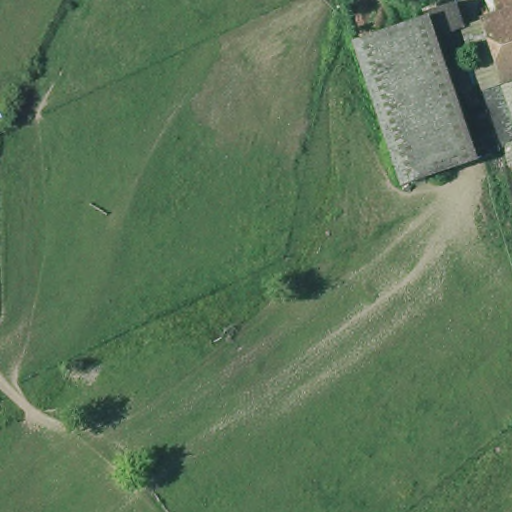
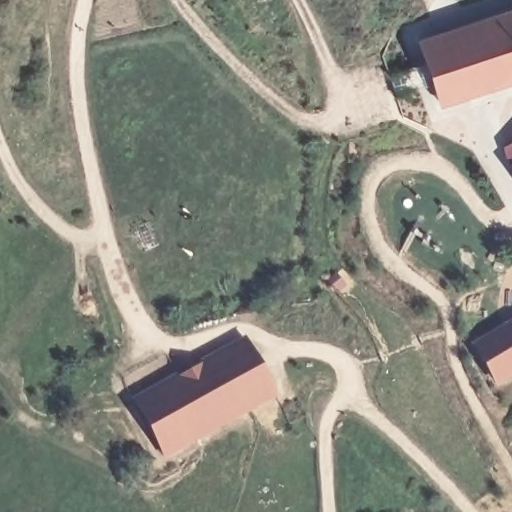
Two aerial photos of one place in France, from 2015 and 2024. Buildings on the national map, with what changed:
demolished [(422,10),(420,3),(430,0),(452,0),(460,22),(430,31),(470,152),(400,176),(352,33),(422,10)]
demolished [(507,0),(512,0),(512,147),(509,138),(499,141),(479,85),(501,76),(480,8),(507,0)]
new [(440,107),(418,40),(512,8),(512,83),(440,107)]
new [(510,167),(502,148),(512,143),(512,170),(510,167)]
new [(497,385),(472,341),(512,317),(512,377),(497,385)]
new [(244,334),(280,392),(165,458),(132,397),(244,334)]

